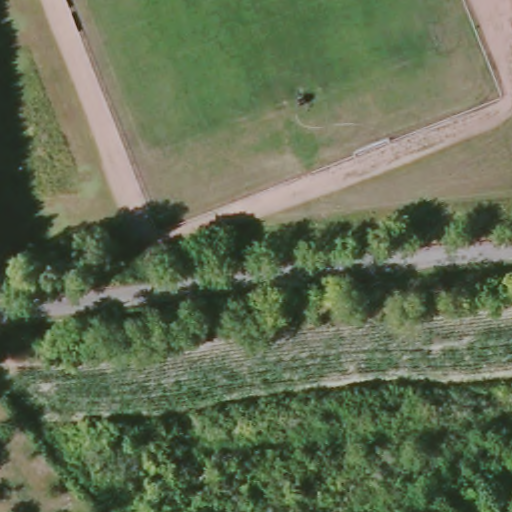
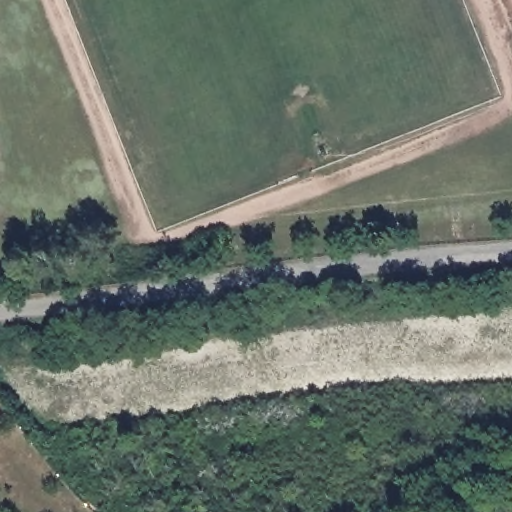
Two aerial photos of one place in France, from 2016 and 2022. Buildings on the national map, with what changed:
[]

